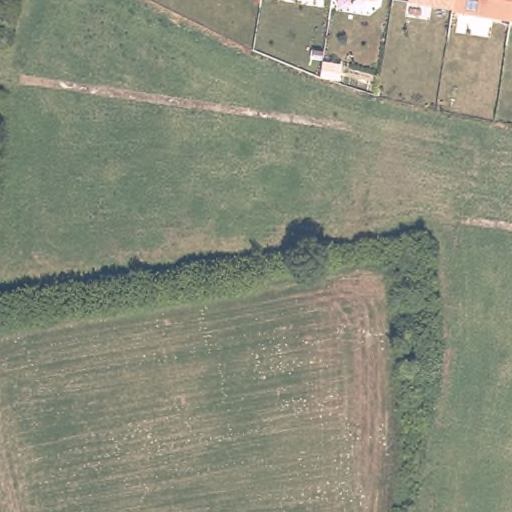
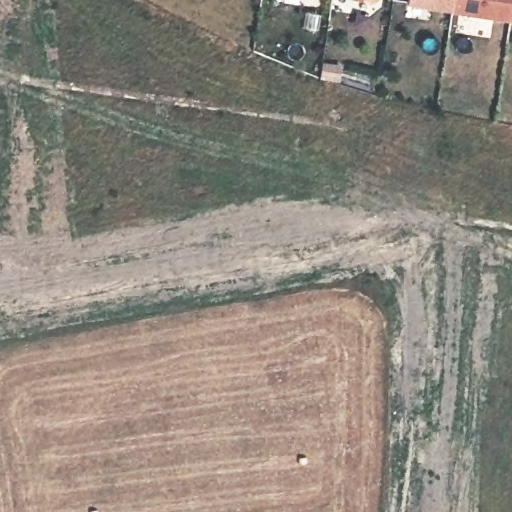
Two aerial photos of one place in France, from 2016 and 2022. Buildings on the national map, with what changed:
unchanged [(406,0),(452,0),(450,7),(406,0)]
unchanged [(452,0),(512,0),(512,1),(509,20),(450,10),(450,7),(452,0)]
unchanged [(512,1),(512,20),(509,20),(512,1)]

